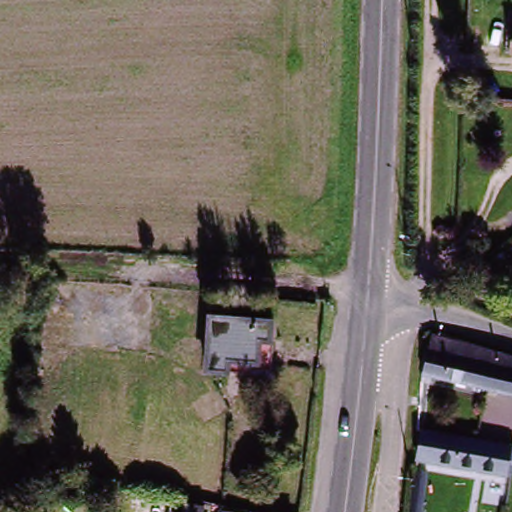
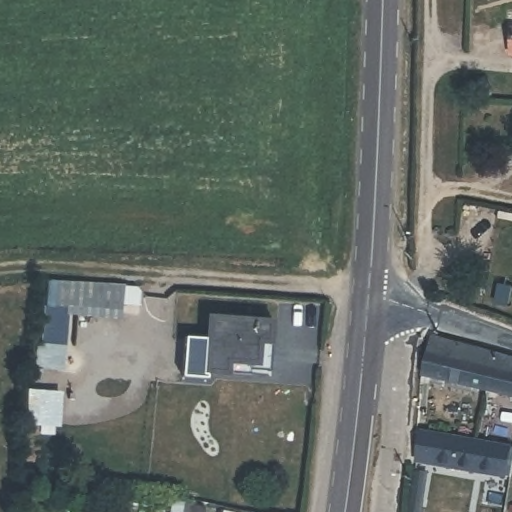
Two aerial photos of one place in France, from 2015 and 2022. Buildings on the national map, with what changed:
new [(48,280),(124,286),(123,321),(74,315),(45,313),(48,280)]
new [(42,349),(45,313),(74,315),(72,352),(42,349)]
unchanged [(264,317),(261,370),(197,366),(201,314),(264,317)]
unchanged [(458,344),(508,359),(512,361),(512,400),(419,375),(428,336),(458,344)]
unchanged [(23,421),(20,441),(9,440),(11,420),(23,421)]
unchanged [(420,430),(449,436),(464,439),(500,447),(494,473),(417,457),(420,430)]
unchanged [(198,512),(185,512),(186,509),(198,512)]

